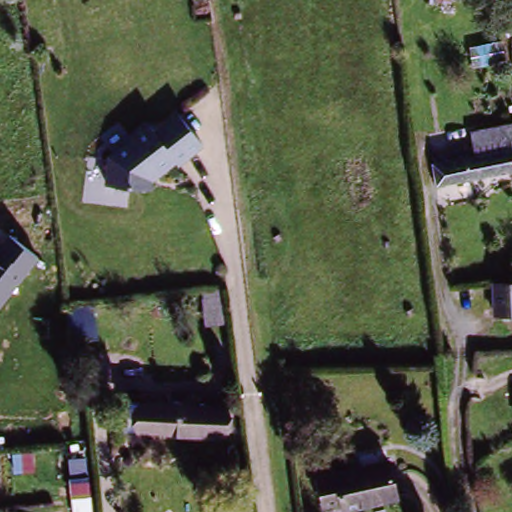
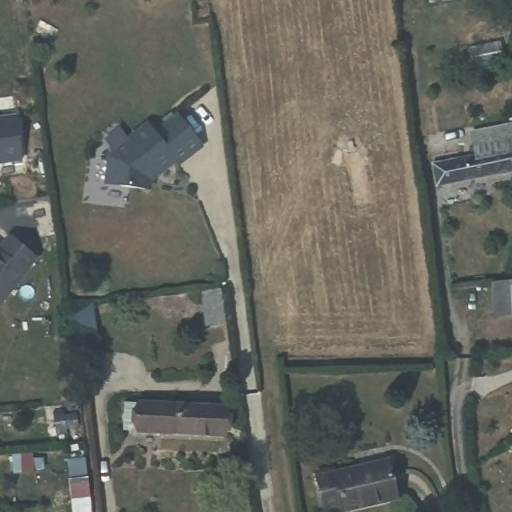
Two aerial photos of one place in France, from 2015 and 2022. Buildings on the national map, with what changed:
unchanged [(427,2),(427,0),(445,0),(427,2)]
unchanged [(159,187),(150,187),(115,184),(116,154),(137,138),(135,135),(152,121),(160,130),(183,112),(207,144),(184,162),(180,158),(162,174),(157,179),(159,187)]
new [(27,156),(0,160),(0,116),(20,113),(27,156)]
unchanged [(431,183),(424,150),(512,130),(512,167),(431,183)]
unchanged [(39,256),(0,308),(0,233),(4,229),(39,256)]
unchanged [(492,310),(490,279),(512,279),(512,310),(492,310)]
unchanged [(226,436),(138,426),(125,425),(127,398),(140,399),(228,409),(226,436)]
unchanged [(312,474),(330,470),(385,459),(392,493),(337,503),(336,496),(317,500),(312,474)]

